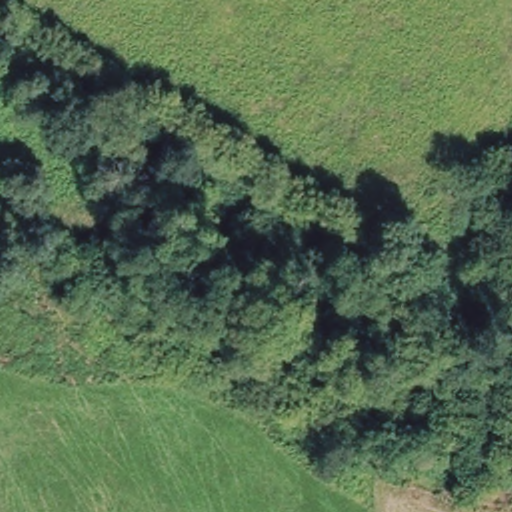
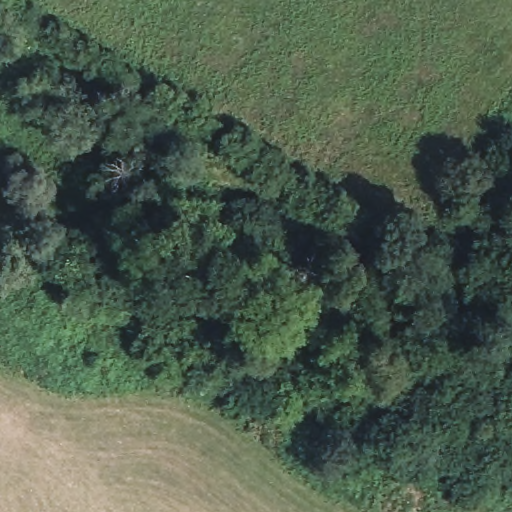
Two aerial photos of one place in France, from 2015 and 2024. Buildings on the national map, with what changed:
[]

